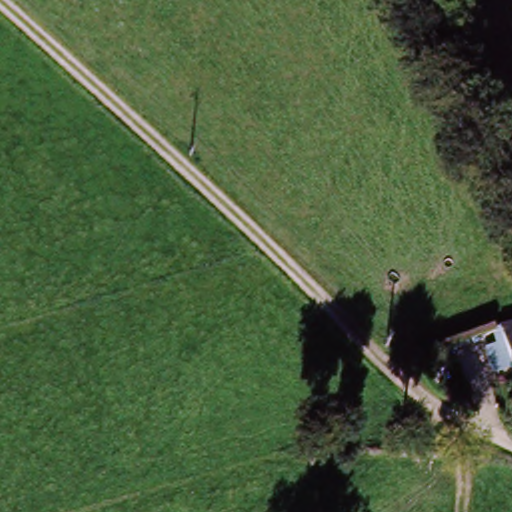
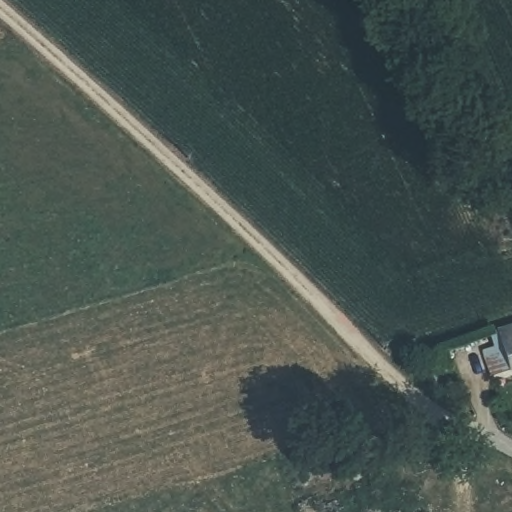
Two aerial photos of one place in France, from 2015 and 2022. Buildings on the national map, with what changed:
unchanged [(503,344),(512,341),(512,366),(503,344)]

